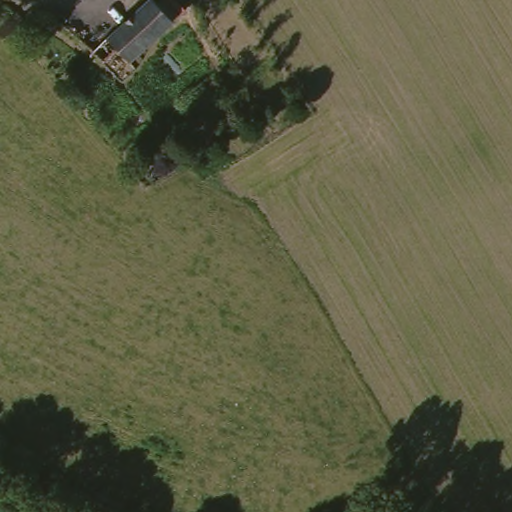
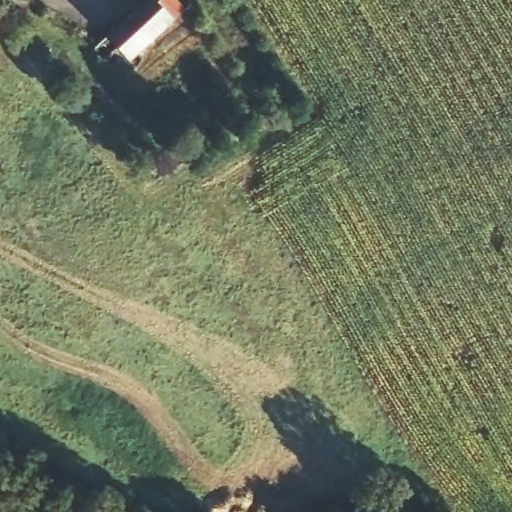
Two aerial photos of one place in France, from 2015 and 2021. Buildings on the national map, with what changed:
unchanged [(179,12),(173,19),(163,29),(140,52),(130,45),(129,43),(112,58),(109,60),(97,49),(146,0),(167,0),(179,12)]

